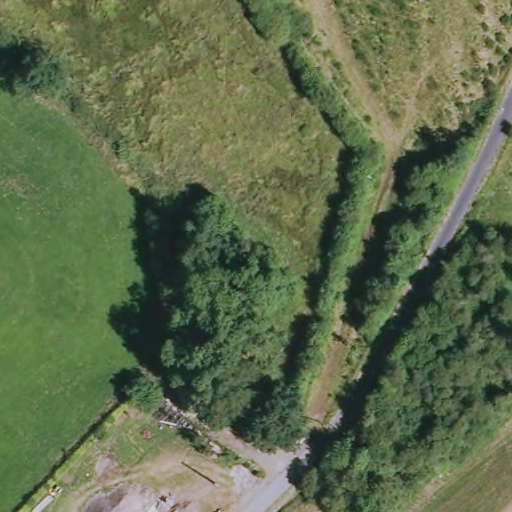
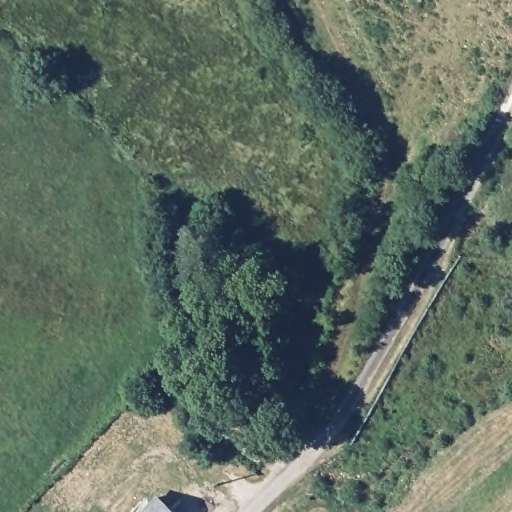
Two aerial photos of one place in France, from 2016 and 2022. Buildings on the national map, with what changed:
unchanged [(180,512),(141,512),(157,495),(180,512)]

